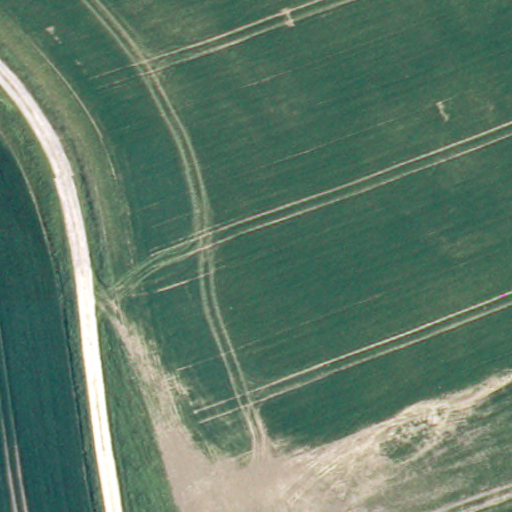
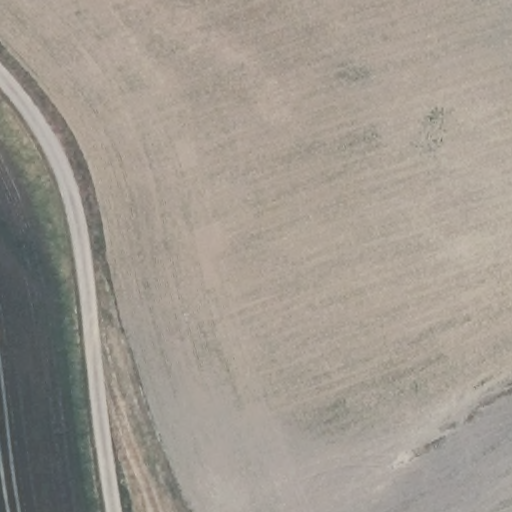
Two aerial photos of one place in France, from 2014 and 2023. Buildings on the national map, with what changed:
[]

